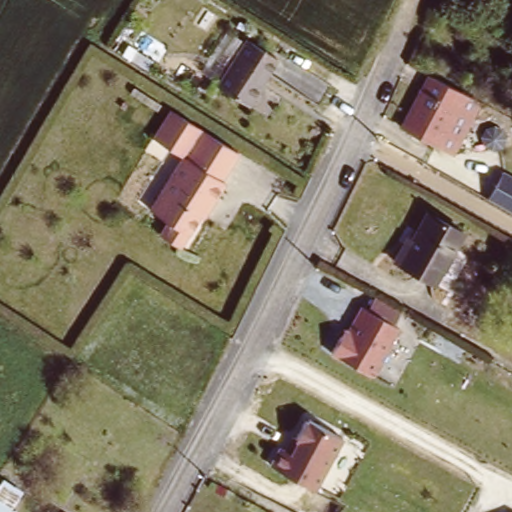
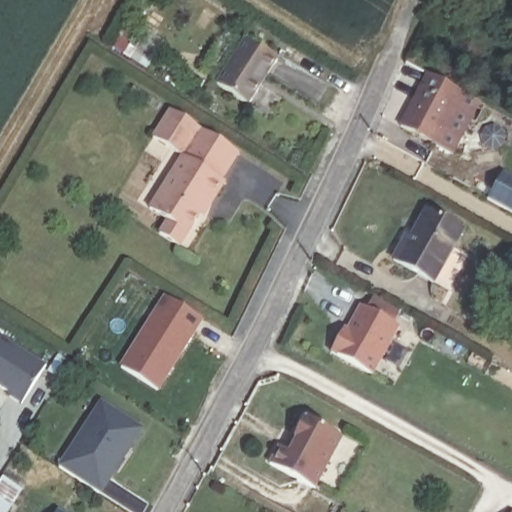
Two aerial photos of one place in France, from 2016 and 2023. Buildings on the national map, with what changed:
unchanged [(215,84),(244,37),(276,57),(246,104),(215,84)]
unchanged [(399,120),(431,71),(493,104),(459,150),(399,120)]
unchanged [(161,231),(170,216),(153,205),(186,155),(155,135),(174,107),(241,150),(223,177),(227,180),(214,200),(210,198),(181,245),(161,231)]
unchanged [(484,205),(499,173),(512,180),(512,219),(484,205)]
unchanged [(407,237),(412,240),(430,206),(467,227),(438,279),(396,255),(407,237)]
unchanged [(342,329),(346,331),(359,306),(364,309),(371,295),(400,311),(393,325),(397,327),(371,375),(329,352),(339,336),(342,329)]
new [(164,297),(203,320),(159,391),(120,365),(164,297)]
new [(21,405),(8,397),(9,394),(0,388),(0,337),(45,365),(21,405)]
new [(100,403),(143,430),(101,493),(58,466),(100,403)]
unchanged [(286,448),(294,435),(296,436),(298,434),(306,418),(308,420),(309,417),(344,435),(334,454),(316,488),(271,464),(281,446),(286,448)]
unchanged [(0,480),(3,475),(25,490),(10,512),(0,512),(0,480)]
unchanged [(62,511),(64,512),(61,512),(62,511)]

